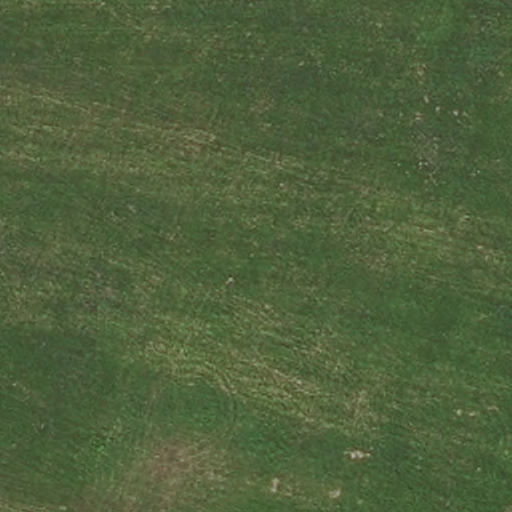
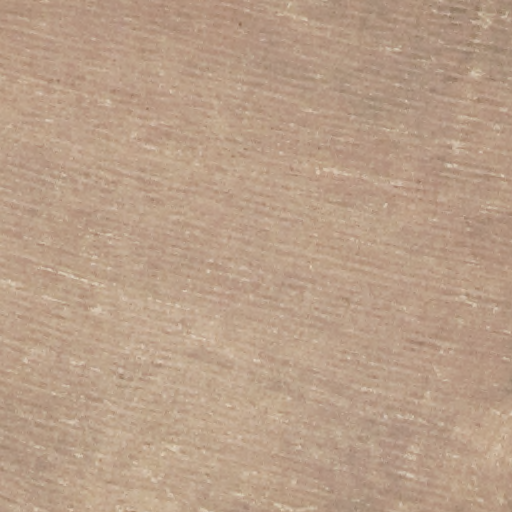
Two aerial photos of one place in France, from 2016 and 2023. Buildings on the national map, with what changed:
[]

